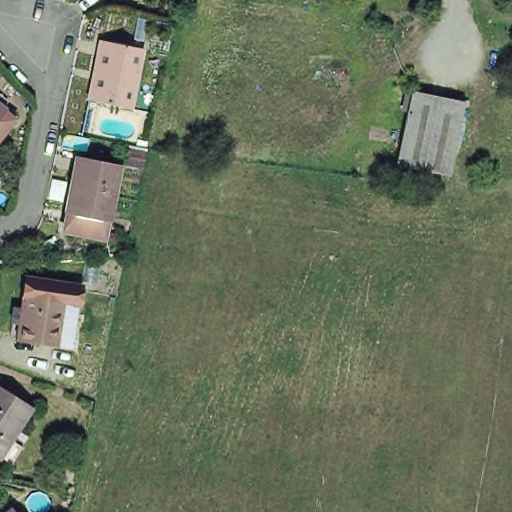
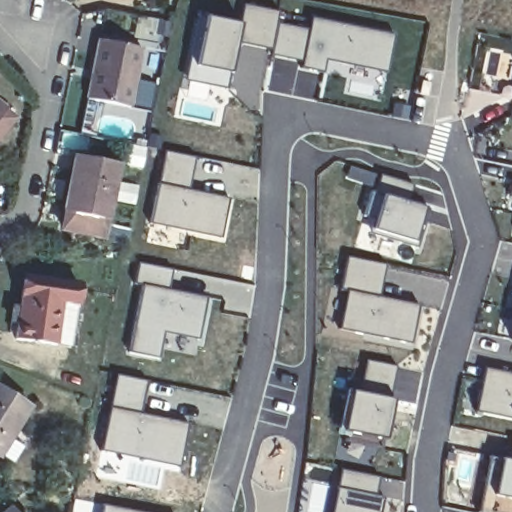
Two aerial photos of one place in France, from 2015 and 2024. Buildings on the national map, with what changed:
new [(240,22),(243,3),(278,10),(276,22),(272,47),(236,40),(240,22)]
new [(204,15),(240,22),(236,40),(224,89),(186,80),(204,15)]
new [(300,63),(307,28),(311,16),(394,33),(386,71),(325,59),(322,72),(319,71),(298,67),(300,63)]
new [(272,47),(276,22),(307,28),(300,63),(275,57),(270,56),(272,47)]
unchanged [(133,101),(90,92),(102,32),(145,41),(133,101)]
new [(275,57),(300,63),(298,67),(319,71),(313,98),(268,89),(275,57)]
demolished [(449,166),(407,157),(403,156),(417,83),(422,85),(463,94),(449,166)]
unchanged [(6,115),(0,123),(0,110),(6,115)]
new [(133,141),(146,143),(148,132),(162,135),(160,149),(146,146),(142,167),(128,164),(133,141)]
new [(164,150),(195,156),(188,188),(157,182),(164,150)]
unchanged [(59,232),(63,210),(75,153),(117,161),(104,218),(100,240),(59,232)]
new [(157,182),(188,188),(226,197),(218,236),(149,222),(157,182)]
new [(512,198),(509,197),(512,184),(512,198)]
new [(381,194),(423,207),(412,244),(370,229),(381,194)]
new [(347,257),(383,264),(377,295),(345,289),(340,288),(347,257)]
new [(133,282),(138,261),(172,269),(167,288),(206,297),(198,340),(163,332),(158,358),(127,352),(140,284),(133,282)]
unchanged [(15,345),(16,327),(10,327),(10,315),(17,315),(18,301),(20,285),(28,286),(28,283),(73,286),(72,305),(70,351),(55,349),(15,345)]
new [(345,289),(377,295),(417,303),(410,342),(338,327),(345,289)]
new [(512,338),(510,338),(512,330),(512,338)]
new [(365,360),(395,366),(390,397),(357,391),(365,360)]
new [(512,372),(512,418),(475,411),(485,366),(512,372)]
new [(116,373),(147,380),(140,412),(108,406),(116,373)]
unchanged [(0,454),(0,385),(31,403),(0,454)]
new [(342,406),(345,406),(348,389),(357,391),(390,397),(381,437),(337,430),(342,406)]
new [(108,406),(140,412),(188,422),(177,466),(100,449),(108,406)]
new [(512,438),(512,460),(507,458),(511,438),(512,438)]
new [(499,457),(507,458),(512,460),(512,501),(490,496),(490,490),(483,489),(489,455),(499,457)]
new [(380,477),(377,494),(382,495),(379,512),(331,512),(336,486),(340,468),(380,477)]
new [(328,485),(323,512),(307,512),(311,482),(328,485)]
new [(101,503),(99,512),(72,512),(75,498),(101,503)]
new [(145,512),(99,512),(101,503),(145,512)]
unchanged [(9,512),(7,512),(8,511),(9,512)]

